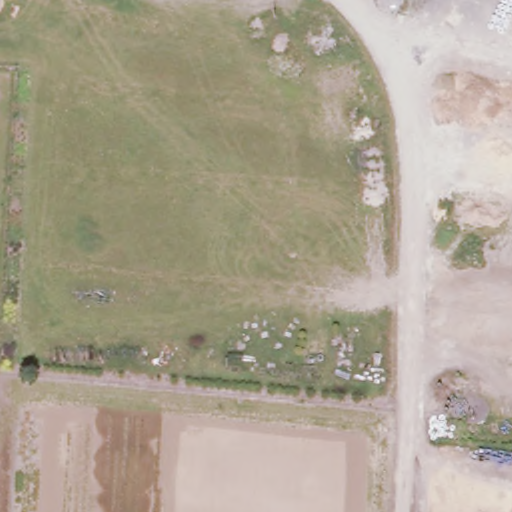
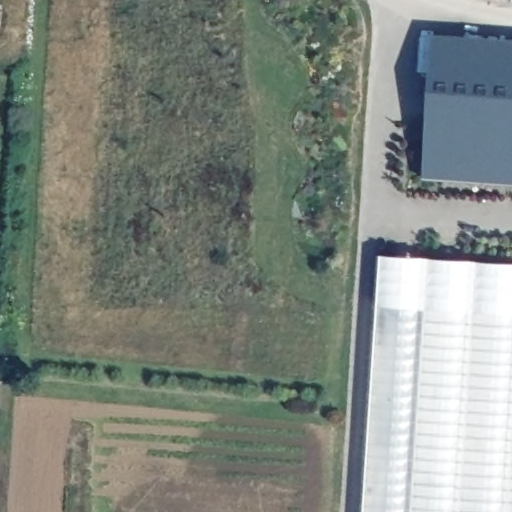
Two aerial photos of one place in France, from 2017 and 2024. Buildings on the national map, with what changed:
new [(512,40),(512,185),(420,178),(431,35),(512,40)]
new [(361,512),(379,257),(512,266),(512,512),(361,512)]

